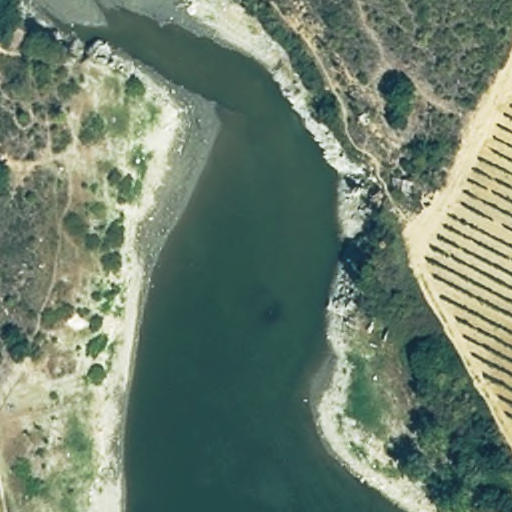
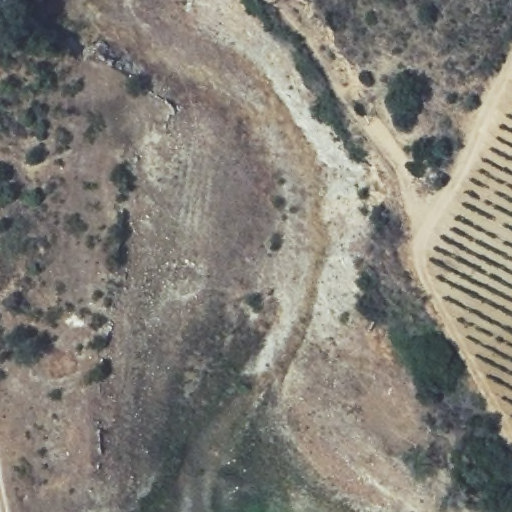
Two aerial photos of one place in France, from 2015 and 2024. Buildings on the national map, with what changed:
unchanged [(420,151),(435,156),(425,181),(410,171),(420,151)]

